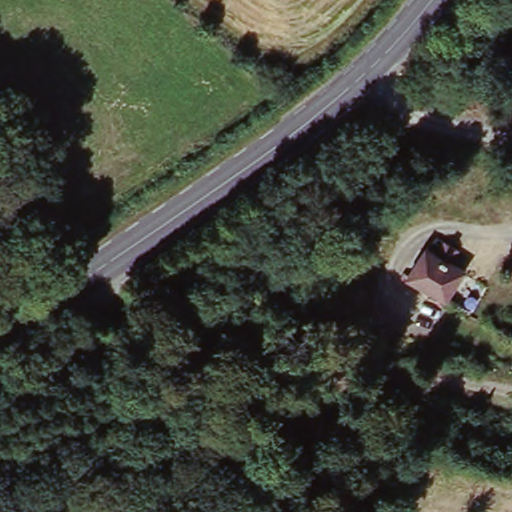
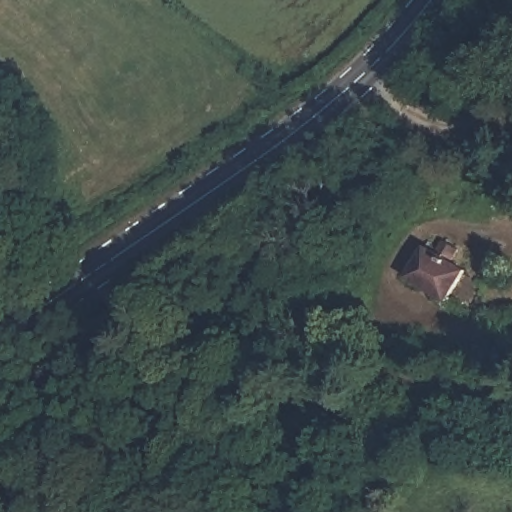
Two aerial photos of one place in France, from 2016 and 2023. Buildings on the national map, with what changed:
unchanged [(408,279),(432,247),(443,254),(449,247),(459,253),(454,264),(466,270),(444,303),(408,279)]

